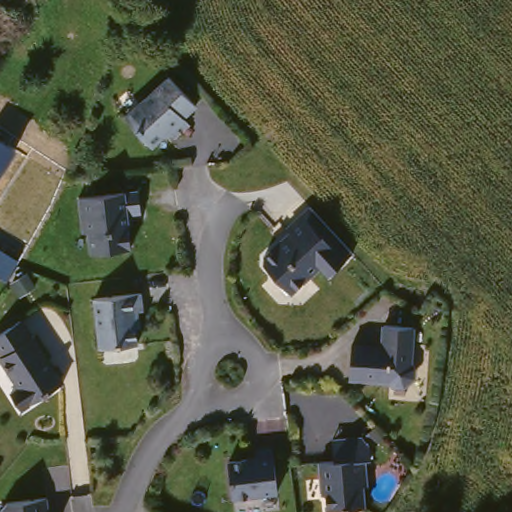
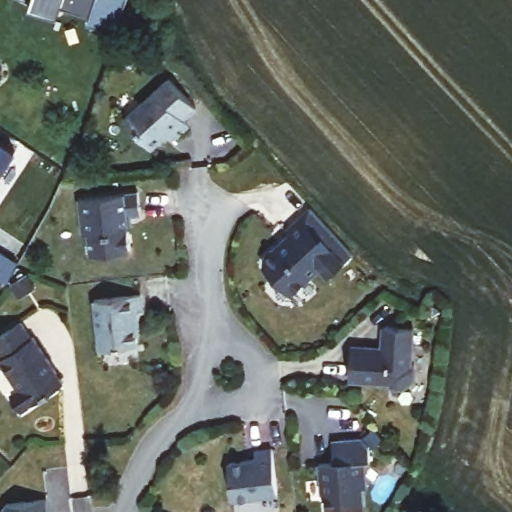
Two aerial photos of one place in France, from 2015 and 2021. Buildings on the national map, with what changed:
new [(86,25),(89,17),(60,8),(57,16),(30,7),(31,3),(22,0),(127,0),(115,35),(86,25)]
unchanged [(163,133),(146,149),(117,119),(161,78),(176,94),(190,108),(177,120),(183,126),(169,139),(164,135),(163,133)]
unchanged [(0,176),(0,139),(17,151),(0,176)]
unchanged [(139,218),(125,219),(129,253),(90,257),(87,236),(81,236),(78,202),(136,195),(139,218)]
unchanged [(260,262),(271,252),(278,252),(290,241),(283,233),(300,218),(307,212),(338,245),(341,248),(342,248),(350,257),(343,264),(327,279),(318,270),(288,298),(260,269),(260,262)]
unchanged [(17,266),(4,287),(0,285),(0,255),(17,266)]
unchanged [(27,281),(34,293),(18,302),(11,290),(27,281)]
unchanged [(134,298),(136,315),(128,316),(132,348),(96,353),(93,335),(89,304),(108,301),(134,298)]
unchanged [(24,416),(13,399),(21,394),(2,365),(4,363),(0,357),(0,342),(22,327),(34,344),(35,343),(65,388),(24,416)]
unchanged [(350,383),(354,349),(385,352),(387,330),(416,333),(412,370),(415,374),(415,382),(405,392),(395,391),(390,387),(350,383)]
unchanged [(364,447),(365,462),(360,463),(362,489),(358,489),(361,511),(353,512),(323,512),(322,501),(317,497),(315,467),(331,465),(328,444),(333,443),(357,440),(364,447)]
unchanged [(272,497),(228,503),(224,467),(252,463),(251,454),(267,452),(272,497)]
unchanged [(2,509),(42,504),(43,512),(0,512),(2,509)]

